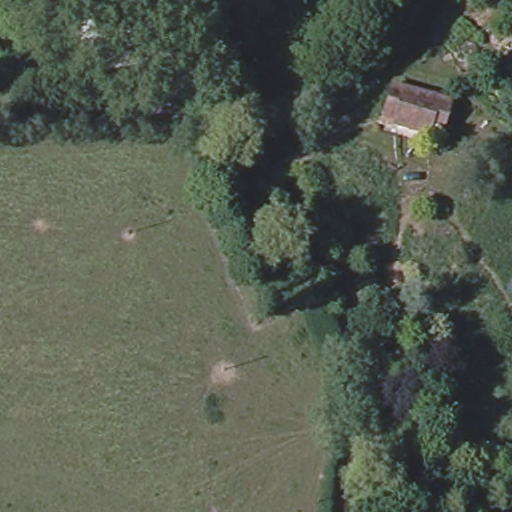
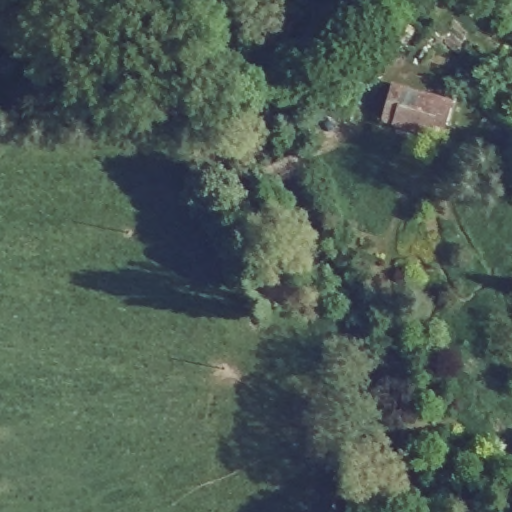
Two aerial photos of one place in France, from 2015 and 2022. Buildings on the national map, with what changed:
unchanged [(424,133),(385,122),(375,119),(377,113),(384,84),(445,101),(437,130),(435,136),(424,133)]

